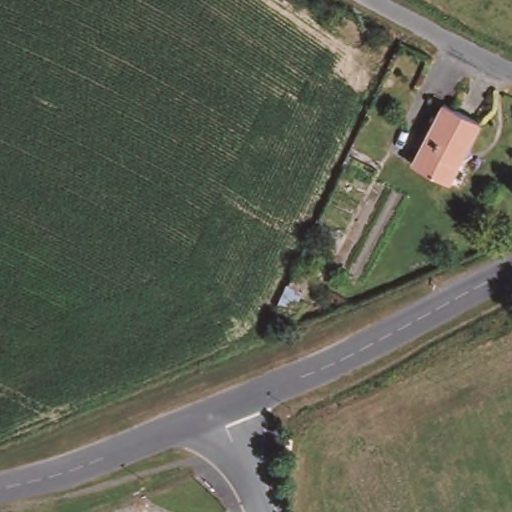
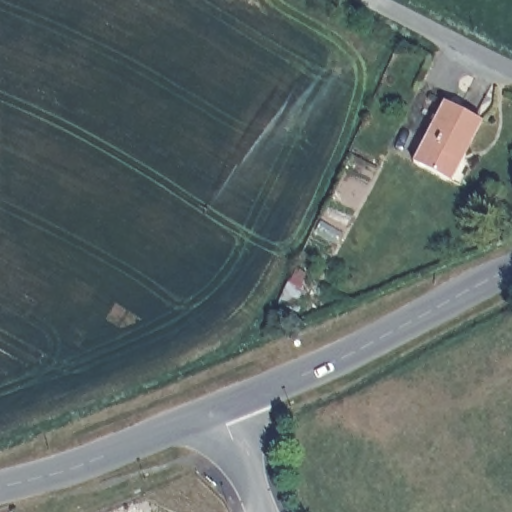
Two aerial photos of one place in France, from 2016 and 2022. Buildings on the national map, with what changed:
unchanged [(444,98),(481,117),(450,177),(412,158),(444,98)]

